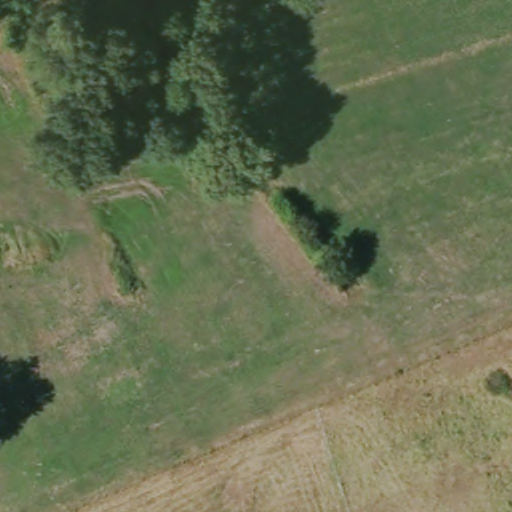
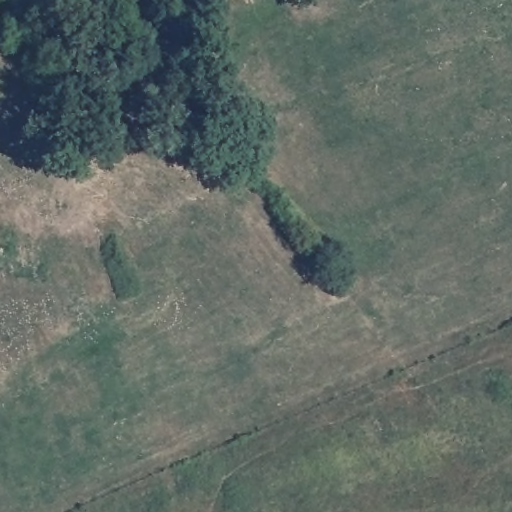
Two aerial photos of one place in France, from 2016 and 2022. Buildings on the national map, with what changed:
[]

